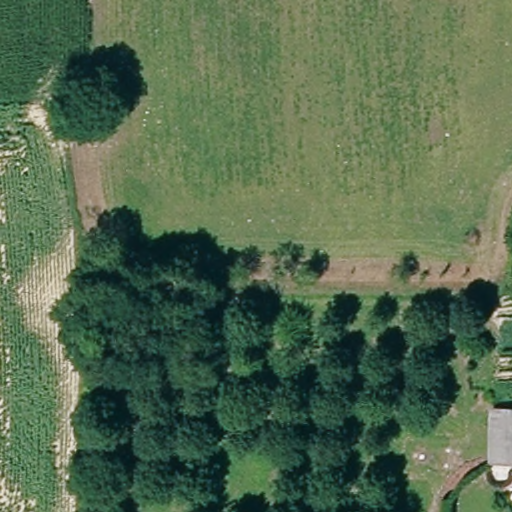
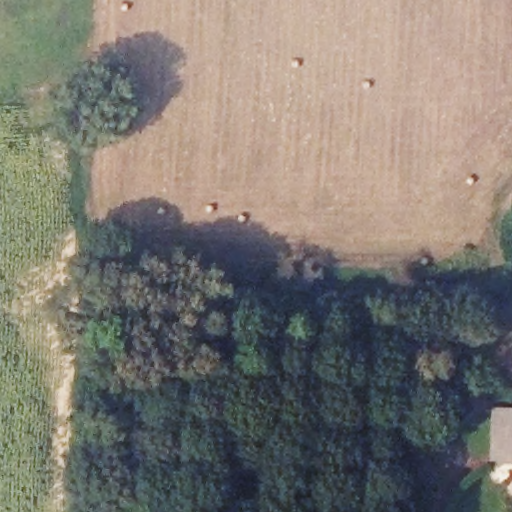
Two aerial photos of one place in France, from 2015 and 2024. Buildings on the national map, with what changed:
unchanged [(496,463),(496,457),(497,409),(512,409),(512,463),(496,463)]

